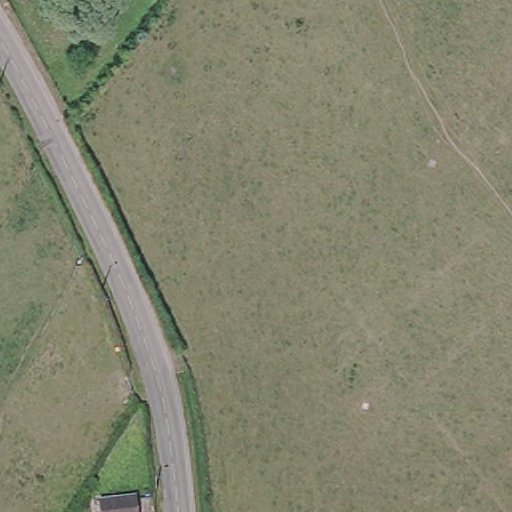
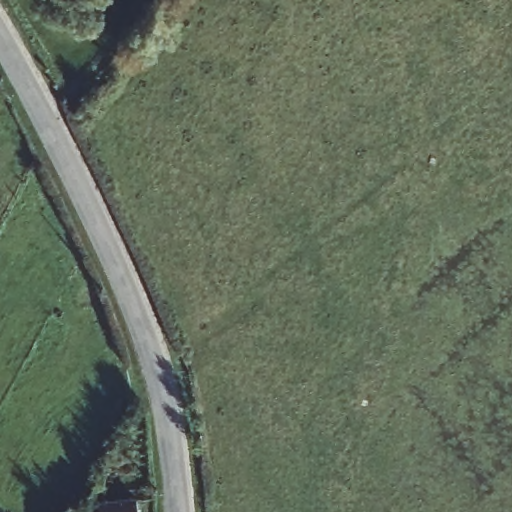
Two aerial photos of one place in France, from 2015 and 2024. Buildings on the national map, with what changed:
unchanged [(137,500),(137,512),(102,512),(102,502),(137,500)]

